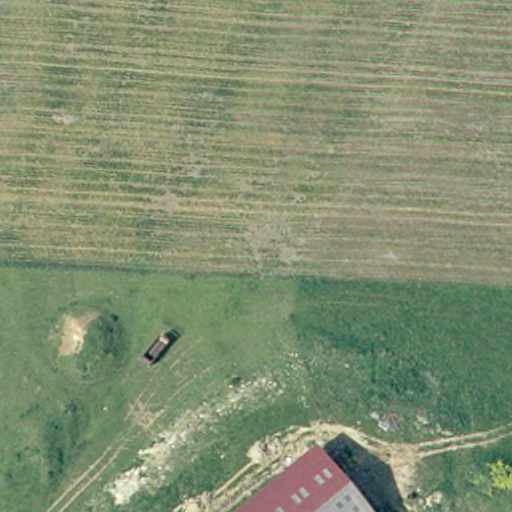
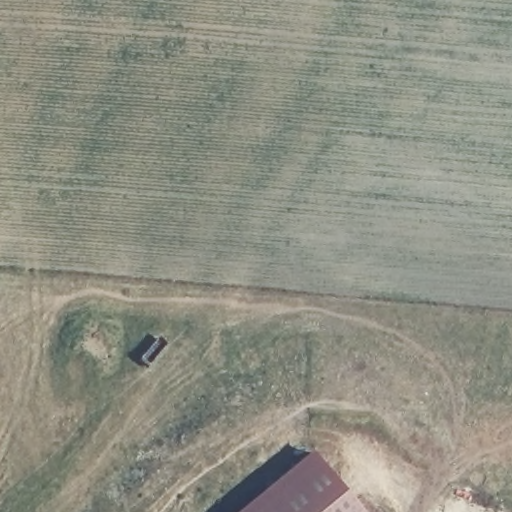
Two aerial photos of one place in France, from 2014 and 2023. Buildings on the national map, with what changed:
unchanged [(363,512),(236,512),(313,451),(363,512)]

